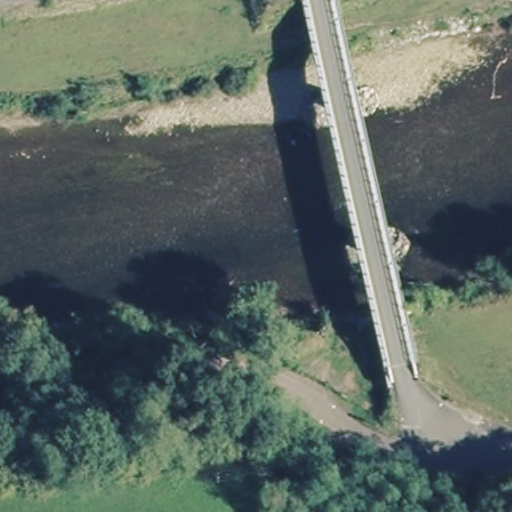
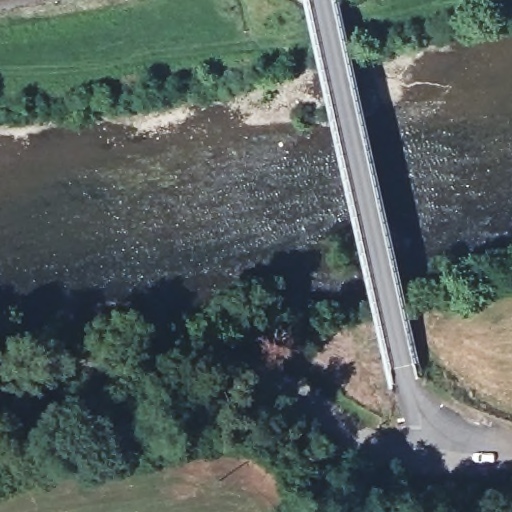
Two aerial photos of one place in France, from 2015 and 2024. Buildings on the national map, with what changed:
[]

